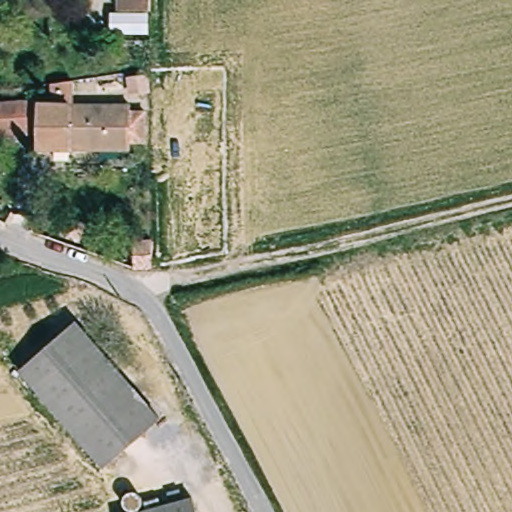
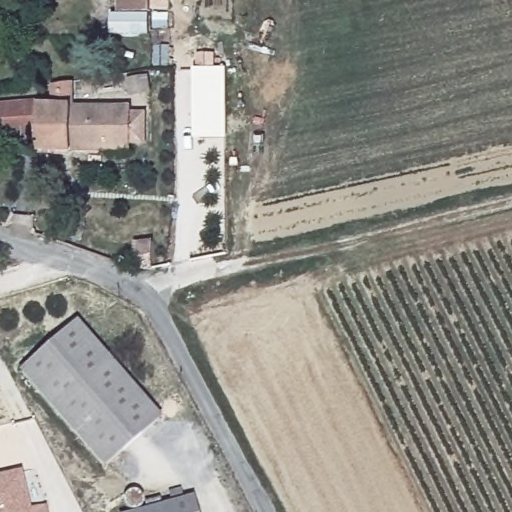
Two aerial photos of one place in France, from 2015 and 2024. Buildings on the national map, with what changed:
unchanged [(117,11),(117,0),(155,0),(155,12),(117,11)]
new [(226,67),(227,137),(194,138),(193,68),(226,67)]
unchanged [(40,104),(59,105),(60,89),(74,89),(74,104),(131,104),(130,147),(39,145),(39,131),(40,104)]
unchanged [(39,131),(1,130),(2,103),(40,104),(39,131)]
unchanged [(106,465),(26,371),(83,323),(163,417),(106,465)]
new [(23,470),(32,509),(47,506),(48,512),(0,512),(0,476),(23,470)]
unchanged [(197,512),(150,512),(195,502),(197,512)]

